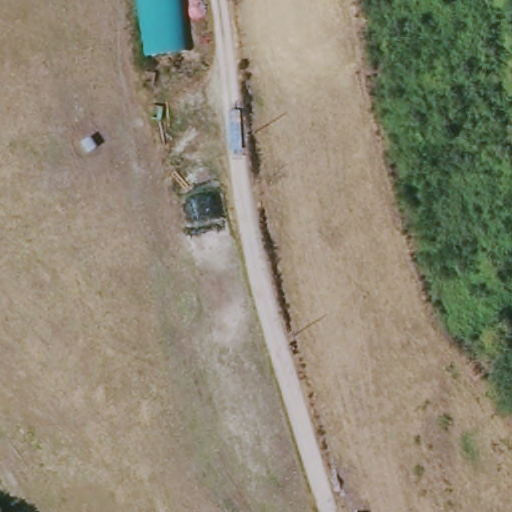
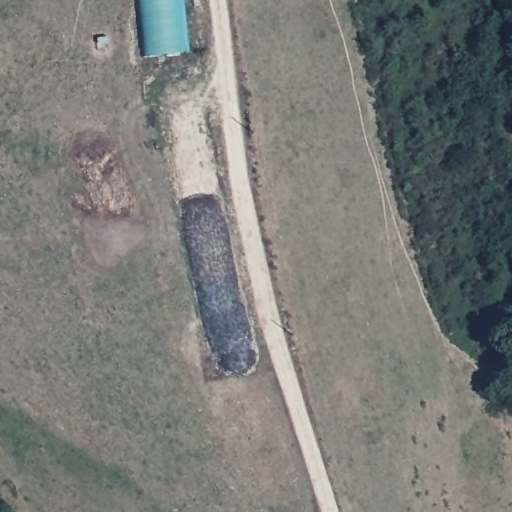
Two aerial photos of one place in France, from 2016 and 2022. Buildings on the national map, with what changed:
unchanged [(143,59),(137,0),(182,0),(187,54),(143,59)]

